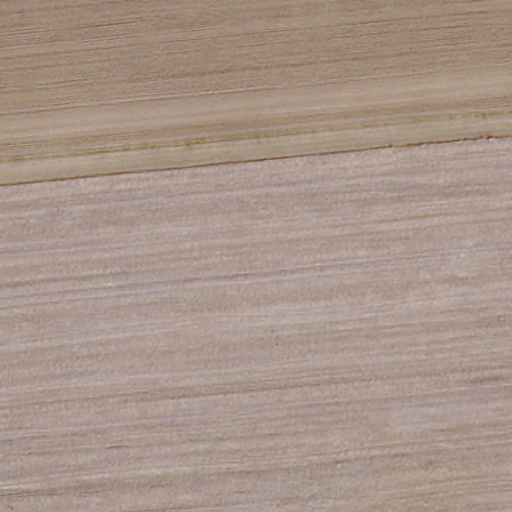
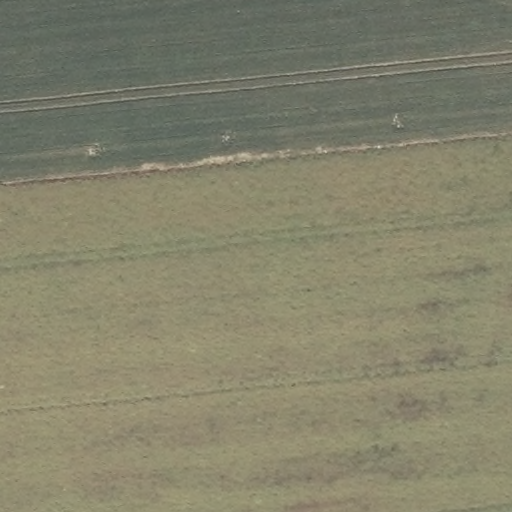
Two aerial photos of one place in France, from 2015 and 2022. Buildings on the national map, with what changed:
[]

